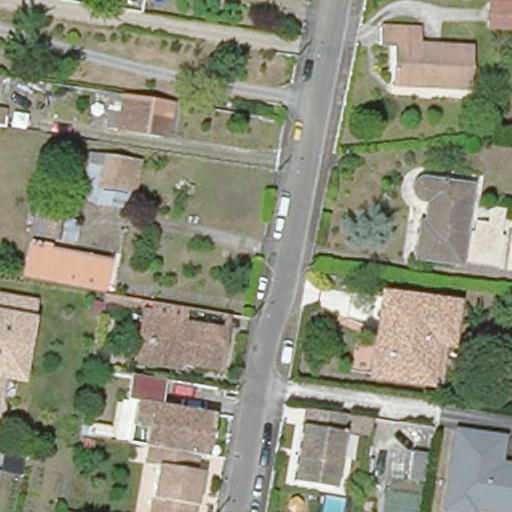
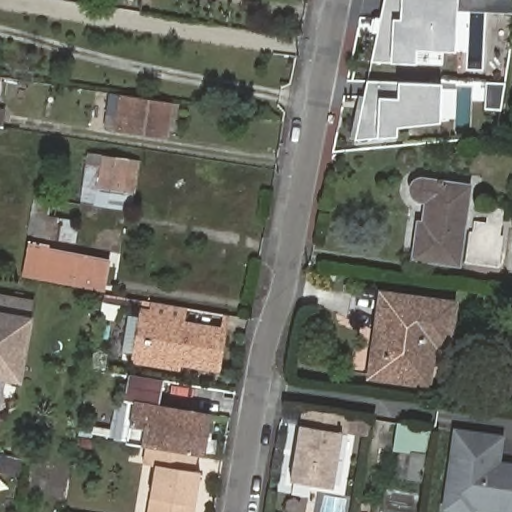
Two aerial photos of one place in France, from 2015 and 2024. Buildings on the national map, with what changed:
new [(512,13),(457,11),(455,50),(417,49),(416,62),(394,62),(374,61),(386,0),(512,0),(512,13)]
demolished [(485,3),(512,4),(512,29),(484,28),(485,3)]
demolished [(438,77),(393,74),(395,41),(381,40),(381,23),(421,24),(421,40),(475,42),(474,84),(437,82),(438,77)]
unchanged [(12,77),(8,98),(0,97),(0,75),(12,77)]
new [(400,82),(441,83),(440,120),(397,125),(397,134),(378,136),(358,138),(369,81),(400,82)]
unchanged [(170,101),(165,136),(109,127),(114,92),(170,101)]
unchanged [(15,113),(12,130),(0,128),(0,111),(15,113)]
unchanged [(107,167),(127,170),(122,198),(102,196),(107,167)]
unchanged [(428,199),(423,198),(420,196),(417,194),(415,191),(414,188),(415,184),(416,181),(418,178),(421,177),(423,176),(426,176),(432,176),(474,184),(460,265),(413,255),(420,217),(425,218),(428,199)]
unchanged [(46,217),(55,219),(52,238),(30,234),(38,197),(49,198),(46,217)]
unchanged [(500,267),(475,264),(479,221),(484,221),(485,208),(506,210),(500,267)]
unchanged [(28,246),(105,260),(100,288),(23,275),(28,246)]
unchanged [(29,314),(16,380),(0,378),(0,290),(31,295),(29,314)]
demolished [(58,292),(79,297),(91,300),(87,316),(79,314),(71,312),(67,324),(51,320),(58,292)]
unchanged [(382,295),(452,304),(448,342),(432,340),(428,380),(374,374),(382,295)]
unchanged [(133,357),(140,317),(150,318),(153,300),(183,305),(181,320),(224,328),(217,366),(179,359),(178,364),(133,357)]
unchanged [(139,393),(133,392),(138,368),(149,370),(169,373),(165,397),(215,405),(208,450),(200,448),(197,448),(151,440),(131,436),(139,393)]
unchanged [(102,380),(93,425),(107,427),(102,442),(79,438),(88,380),(102,380)]
unchanged [(291,495),(300,424),(331,428),(343,429),(370,433),(370,434),(371,434),(371,435),(372,436),(373,436),(370,451),(341,447),(333,501),(291,495)]
unchanged [(497,431),(493,457),(512,460),(512,512),(509,512),(509,509),(481,505),(471,504),(470,510),(440,505),(450,424),(493,431),(497,431)]
unchanged [(146,464),(151,440),(197,448),(200,448),(195,468),(203,470),(199,491),(198,501),(196,512),(153,512),(155,496),(158,466),(146,464)]
unchanged [(422,454),(417,479),(403,477),(408,451),(422,454)]

